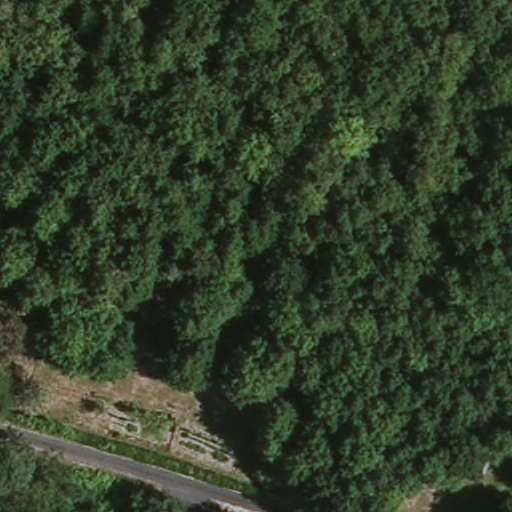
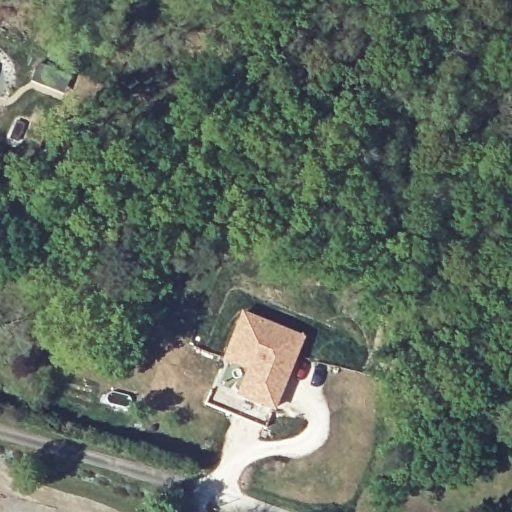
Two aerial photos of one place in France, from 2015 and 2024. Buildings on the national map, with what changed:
new [(233,411),(206,400),(243,309),(303,333),(274,405),(266,424),(233,411)]

